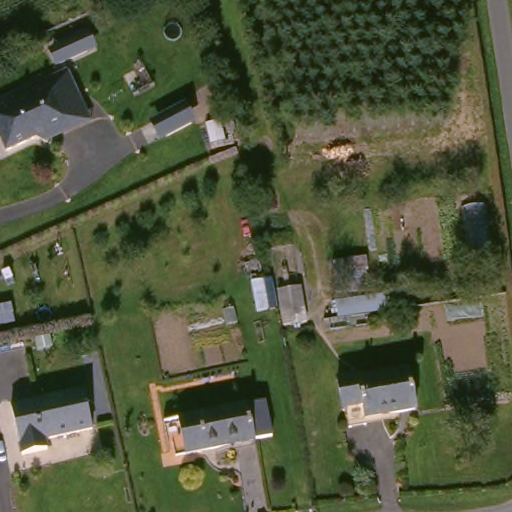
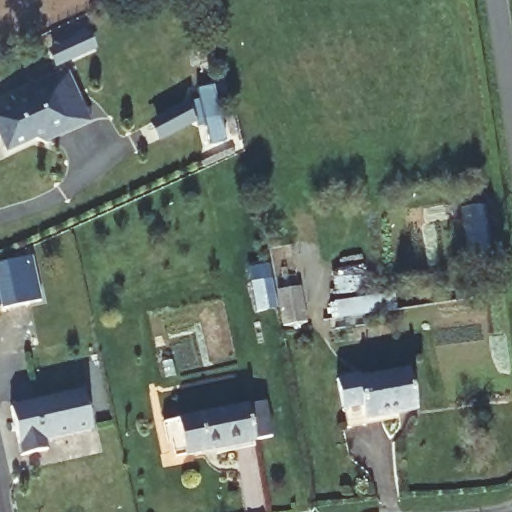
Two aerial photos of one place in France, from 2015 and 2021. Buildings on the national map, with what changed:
unchanged [(82,35),(90,50),(62,63),(56,48),(82,35)]
unchanged [(77,130),(59,138),(54,151),(42,146),(14,159),(0,129),(0,111),(18,102),(15,95),(71,70),(81,92),(95,122),(77,130)]
unchanged [(196,121),(159,138),(147,120),(186,102),(196,121)]
new [(41,298),(5,307),(0,289),(0,263),(29,251),(41,298)]
unchanged [(301,345),(285,348),(277,313),(295,310),(301,345)]
unchanged [(365,421),(366,428),(346,430),(337,380),(358,376),(360,383),(408,376),(413,414),(365,421)]
unchanged [(86,390),(94,429),(46,438),(48,448),(22,453),(12,405),(86,390)]
unchanged [(186,455),(185,448),(179,449),(175,421),(258,407),(265,442),(186,455)]

